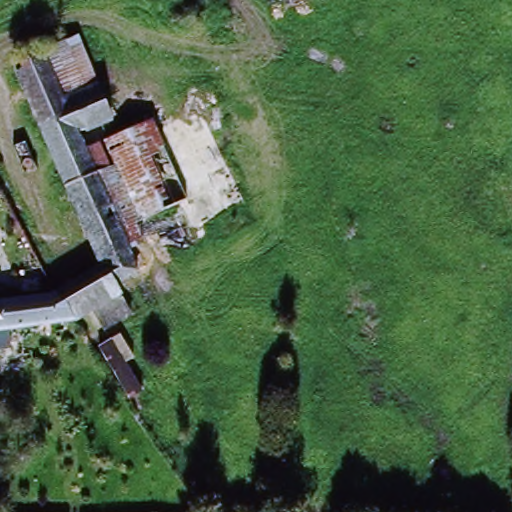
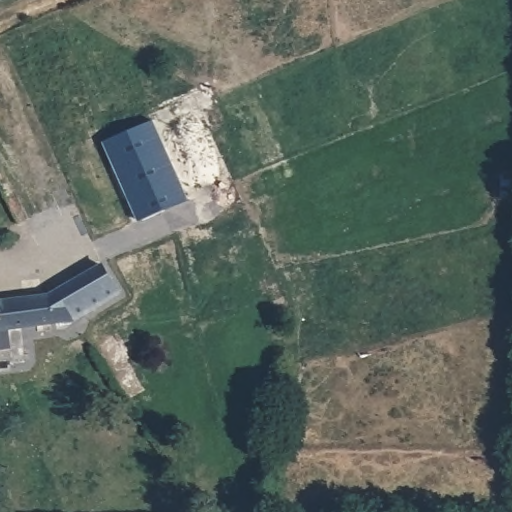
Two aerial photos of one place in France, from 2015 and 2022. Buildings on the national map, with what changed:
demolished [(2,83),(8,96),(0,100),(0,71),(14,65),(33,57),(40,54),(61,100),(76,134),(78,139),(84,152),(93,172),(65,182),(19,76),(2,83)]
demolished [(74,94),(96,85),(110,120),(76,134),(61,100),(74,94)]
unchanged [(154,121),(188,199),(153,214),(118,137),(154,121)]
unchanged [(118,137),(153,214),(136,221),(102,144),(118,137)]
demolished [(84,152),(102,144),(136,221),(118,229),(93,172),(84,152)]
demolished [(93,172),(118,229),(91,241),(65,182),(93,172)]
unchanged [(58,290),(78,280),(104,267),(113,281),(120,293),(93,307),(75,317),(52,320),(24,323),(0,327),(0,299),(19,296),(48,292),(58,290)]
unchanged [(123,338),(136,363),(127,370),(142,393),(125,402),(93,355),(123,338)]

